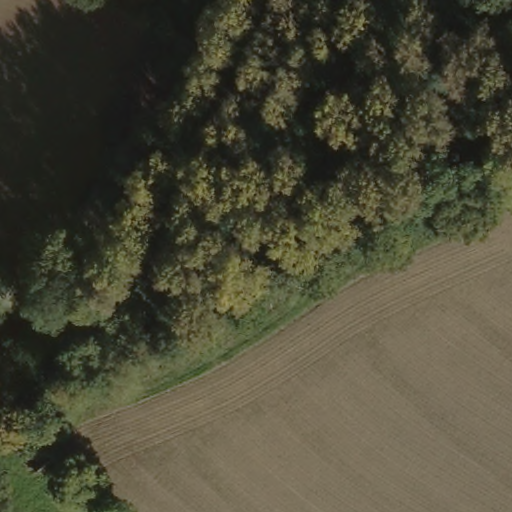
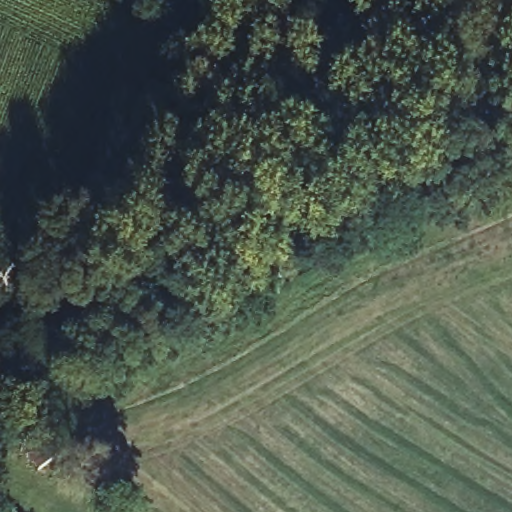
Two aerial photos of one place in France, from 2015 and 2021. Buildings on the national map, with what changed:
unchanged [(51,458),(35,471),(15,445),(30,433),(51,458)]

